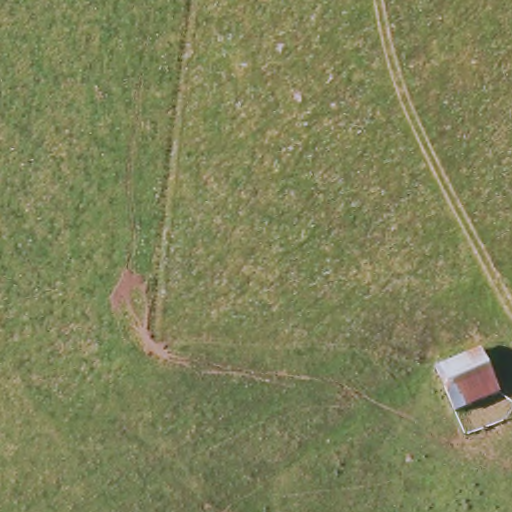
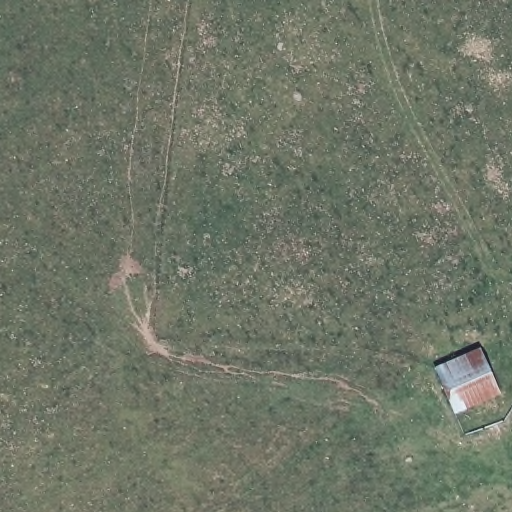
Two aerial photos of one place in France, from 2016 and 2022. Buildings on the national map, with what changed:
unchanged [(461,415),(440,368),(486,349),(507,395),(461,415)]

